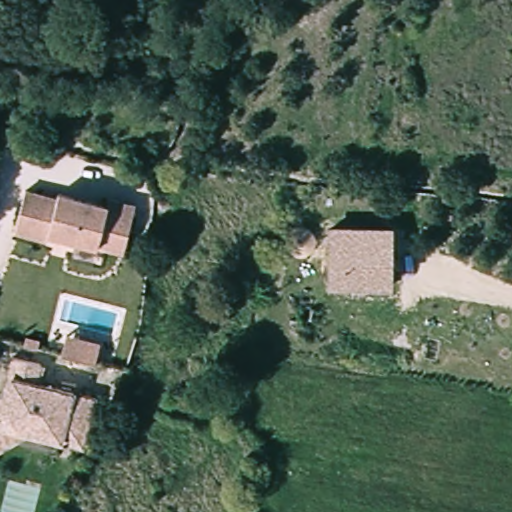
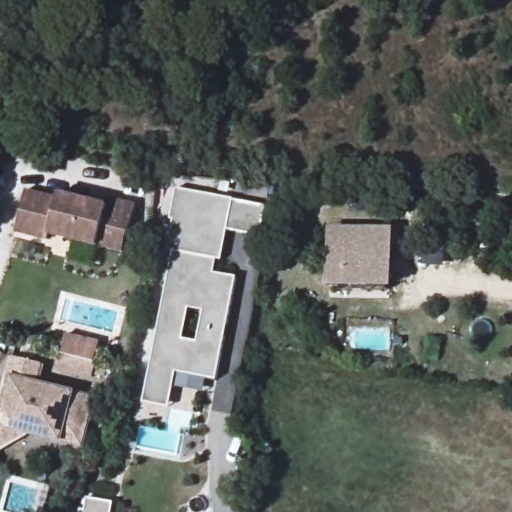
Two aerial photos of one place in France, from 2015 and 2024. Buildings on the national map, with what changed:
new [(171,251),(165,249),(172,220),(168,219),(175,188),(234,199),(222,261),(217,260),(215,273),(237,277),(216,381),(175,373),(168,408),(142,402),(171,251)]
unchanged [(122,253),(51,237),(45,243),(12,234),(23,190),(58,196),(59,192),(107,204),(108,198),(135,205),(122,253)]
unchanged [(393,228),(392,288),(326,287),(327,227),(393,228)]
unchanged [(73,328),(105,338),(98,358),(67,348),(73,328)]
unchanged [(20,423),(12,420),(0,416),(0,391),(1,391),(8,367),(5,366),(10,347),(39,356),(33,375),(90,392),(79,428),(75,439),(54,433),(20,423)]
unchanged [(0,416),(12,420),(20,423),(0,435),(0,416)]
new [(84,510),(86,498),(112,502),(111,512),(79,512),(80,509),(84,510)]

